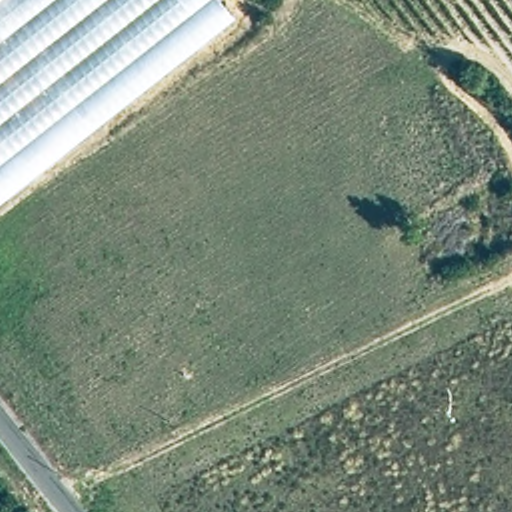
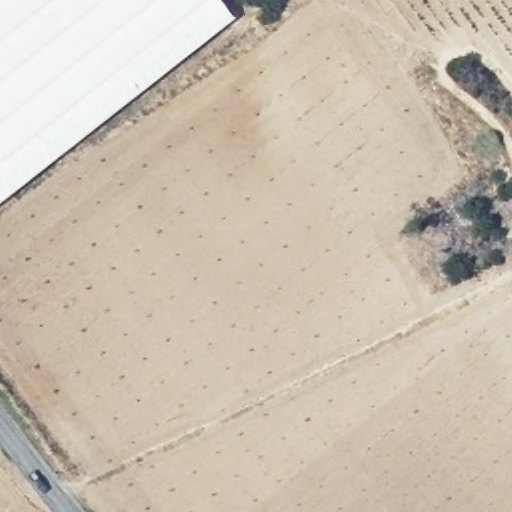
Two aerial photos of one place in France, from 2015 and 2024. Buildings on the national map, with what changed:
unchanged [(217,0),(233,20),(0,207),(0,0),(217,0)]

